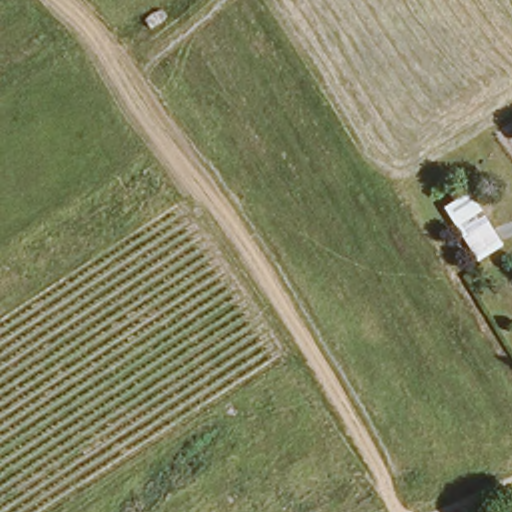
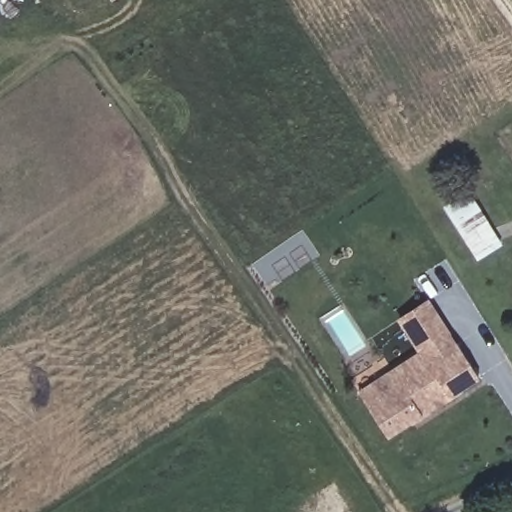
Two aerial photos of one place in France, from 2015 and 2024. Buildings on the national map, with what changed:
unchanged [(483,252),(453,202),(476,189),(504,240),(483,252)]
new [(397,320),(429,298),(457,345),(429,363),(422,353),(397,320)]
new [(387,437),(363,397),(397,376),(394,371),(422,353),(429,363),(457,345),(479,379),(387,437)]

